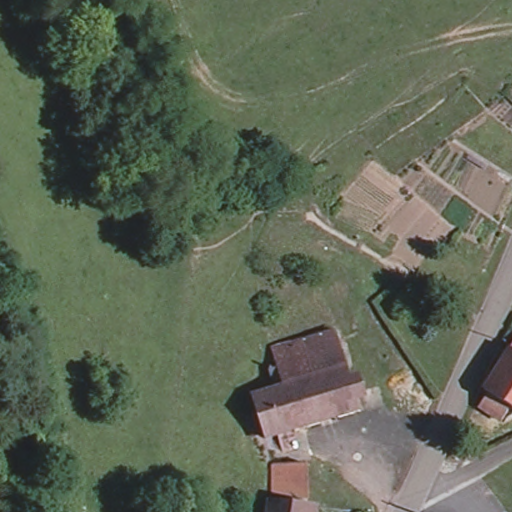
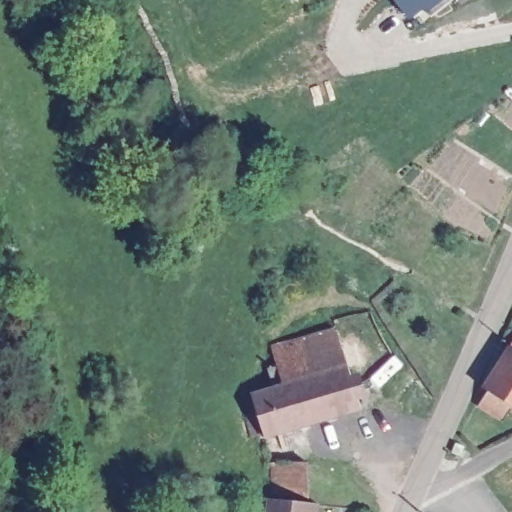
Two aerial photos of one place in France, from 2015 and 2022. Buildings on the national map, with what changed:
new [(432,17),(426,9),(407,22),(392,0),(454,0),(432,17)]
unchanged [(277,383),(270,362),(278,360),(273,343),(338,324),(340,331),(350,362),(307,375),(277,383)]
unchanged [(484,396),(492,382),(489,379),(512,343),(512,403),(507,411),(484,396)]
unchanged [(350,362),(362,404),(320,417),(307,375),(350,362)]
unchanged [(245,410),(257,406),(252,391),(277,383),(307,375),(320,417),(265,432),(264,428),(252,432),(245,410)]
unchanged [(463,447),(459,457),(452,453),(457,443),(463,447)]
unchanged [(307,463),(308,500),(273,496),(272,463),(307,463)]
unchanged [(320,505),(318,512),(267,512),(268,499),(320,505)]

